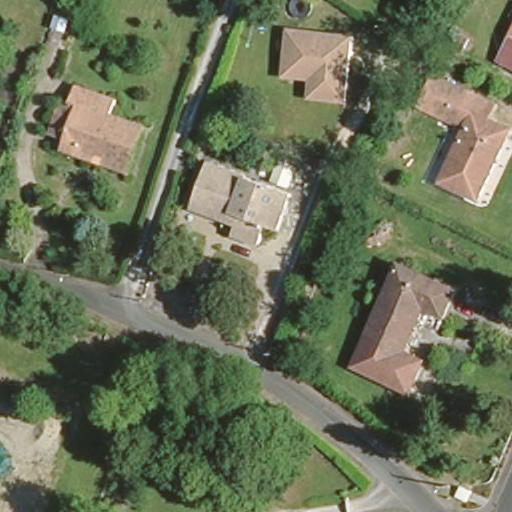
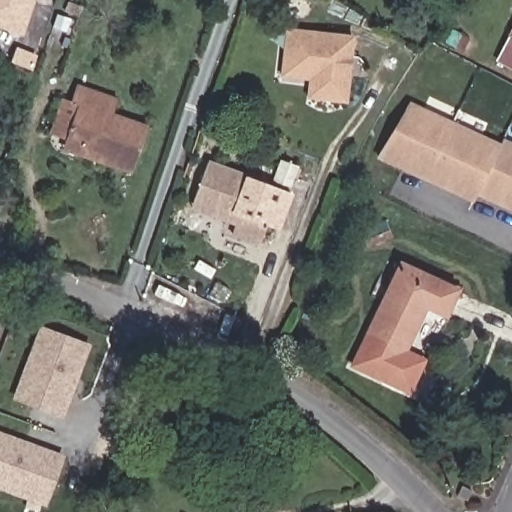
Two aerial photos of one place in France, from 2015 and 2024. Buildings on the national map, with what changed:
new [(0,29),(0,0),(35,0),(23,37),(0,29)]
unchanged [(76,16),(68,42),(49,37),(57,11),(76,16)]
unchanged [(512,22),(512,55),(499,48),(512,22)]
unchanged [(454,25),(472,34),(466,47),(447,39),(454,25)]
unchanged [(309,101),(309,80),(283,79),(286,30),(352,37),(347,102),(309,101)]
demolished [(437,65),(417,55),(419,53),(426,43),(443,52),(437,65)]
demolished [(492,115),(512,126),(474,198),(436,177),(462,127),(420,104),(438,73),(497,105),(492,115)]
unchanged [(71,136),(53,129),(63,102),(70,105),(78,80),(118,95),(111,112),(146,126),(130,169),(95,156),(67,145),(71,136)]
new [(473,205),(378,160),(406,101),(501,145),(504,139),(512,142),(512,213),(477,196),(473,205)]
unchanged [(314,176),(326,141),(346,146),(334,183),(314,176)]
unchanged [(259,219),(253,235),(227,226),(230,216),(186,202),(189,194),(203,155),(285,185),(279,205),(274,222),(259,219)]
unchanged [(446,321),(421,311),(405,350),(425,357),(412,390),(356,367),(394,270),(457,295),(446,321)]
new [(39,326),(91,345),(64,420),(12,400),(39,326)]
new [(65,455),(46,508),(0,491),(0,432),(65,455)]

